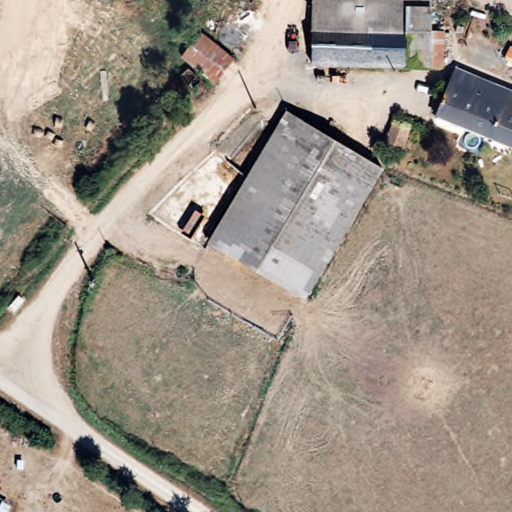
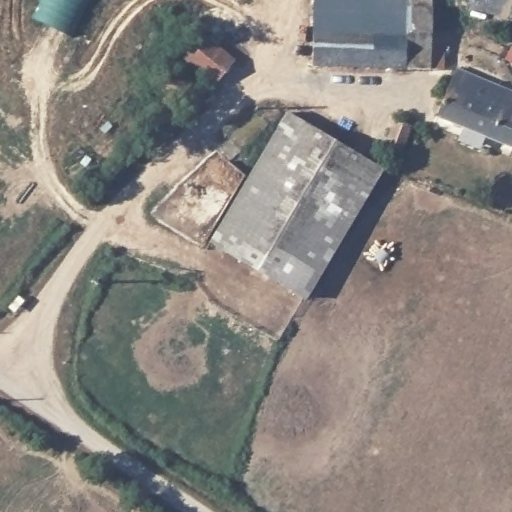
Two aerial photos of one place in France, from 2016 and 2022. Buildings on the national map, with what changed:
new [(32,17),(40,0),(89,0),(72,36),(32,17)]
unchanged [(450,30),(450,66),(317,65),(319,0),(435,0),(435,30),(450,30)]
unchanged [(232,60),(213,88),(180,60),(199,35),(232,60)]
unchanged [(512,146),(435,114),(455,66),(512,89),(512,146)]
unchanged [(380,168),(302,297),(206,239),(286,110),(380,168)]
unchanged [(410,126),(398,154),(382,147),(393,120),(410,126)]

